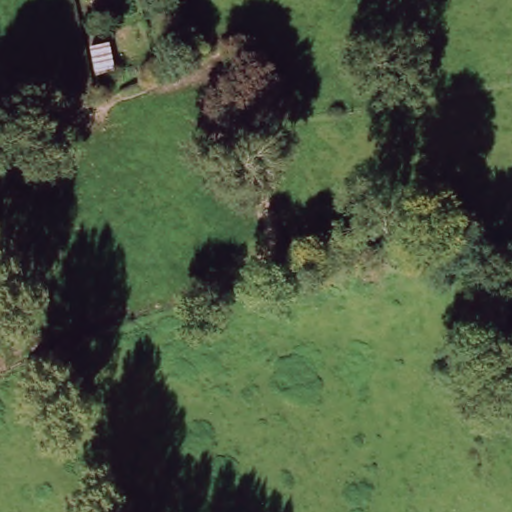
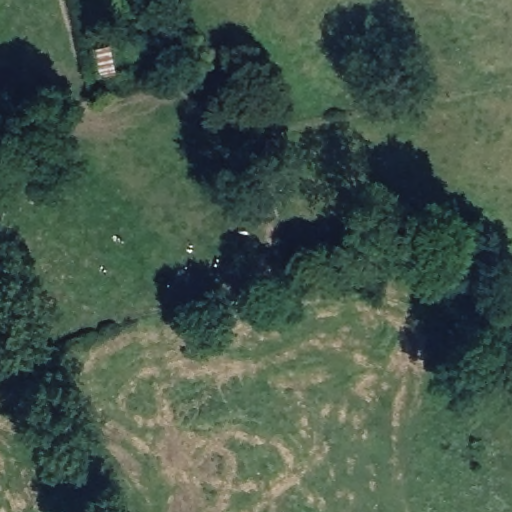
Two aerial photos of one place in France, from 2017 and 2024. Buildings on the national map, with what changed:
unchanged [(110,55),(115,81),(97,85),(92,57),(110,55)]

